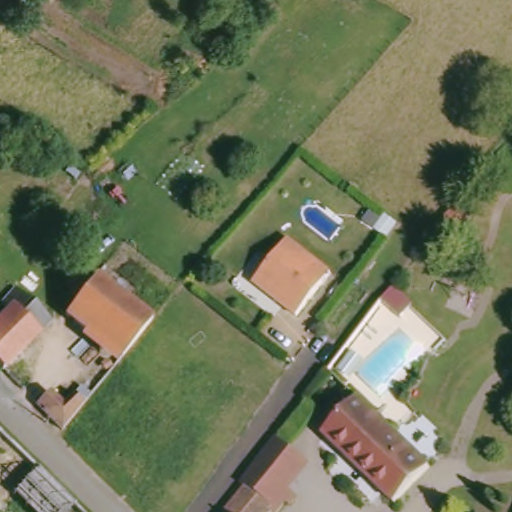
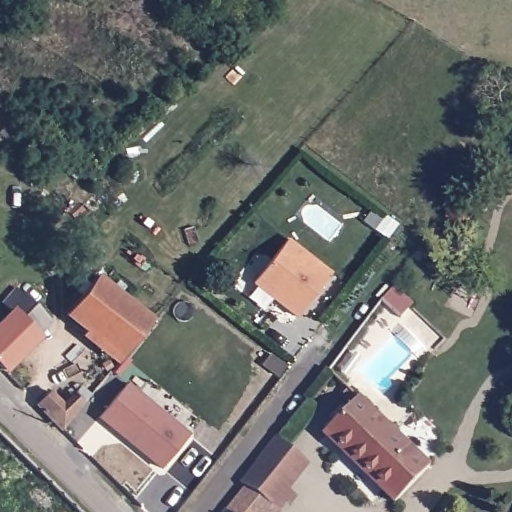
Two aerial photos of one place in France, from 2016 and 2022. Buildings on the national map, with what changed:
unchanged [(251,282),(285,239),(327,270),(292,314),(279,304),(267,294),(251,282)]
unchanged [(94,278),(148,324),(115,363),(59,314),(94,278)]
unchanged [(394,287),(414,303),(403,315),(383,299),(394,287)]
unchanged [(9,317),(0,309),(13,294),(48,326),(35,340),(0,377),(0,326),(9,317)]
new [(100,419),(128,384),(189,434),(160,469),(100,419)]
unchanged [(63,429),(33,401),(46,387),(62,401),(73,389),(87,401),(63,429)]
unchanged [(352,394),(427,456),(396,497),(321,434),(331,421),(352,394)]
unchanged [(236,474),(266,438),(296,463),(268,499),(236,474)]
unchanged [(257,512),(212,512),(236,482),(233,479),(236,474),(268,499),(257,512)]

